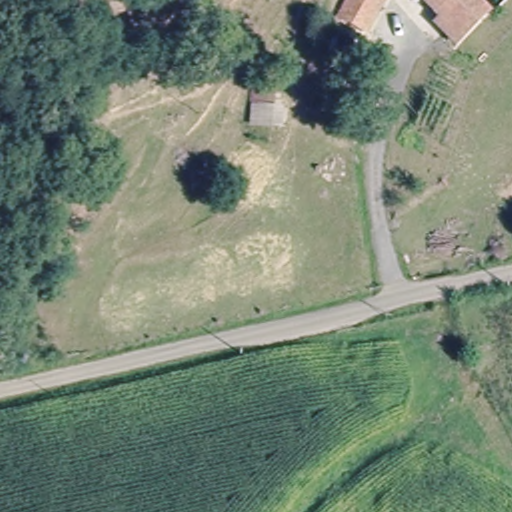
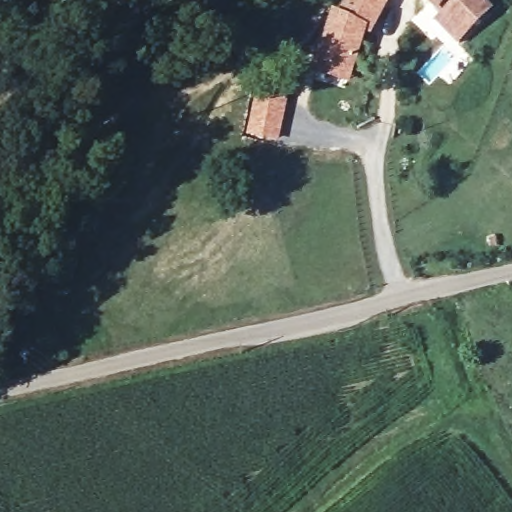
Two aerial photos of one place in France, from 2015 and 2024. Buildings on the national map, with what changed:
new [(312,74),(331,9),(336,5),(357,17),(362,21),(377,0),(390,0),(370,35),(366,32),(350,87),(312,74)]
unchanged [(357,17),(336,5),(339,0),(377,0),(362,21),(357,17)]
unchanged [(478,5),(490,17),(463,42),(467,47),(460,53),(456,49),(448,40),(455,34),(451,30),(424,0),(474,0),(478,5)]
new [(255,87),(288,94),(278,141),(245,134),(255,87)]

